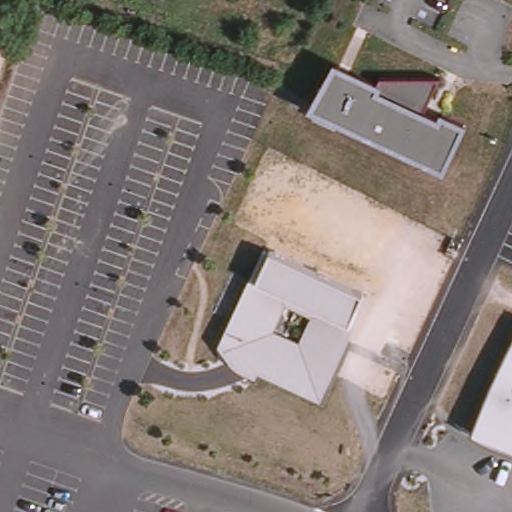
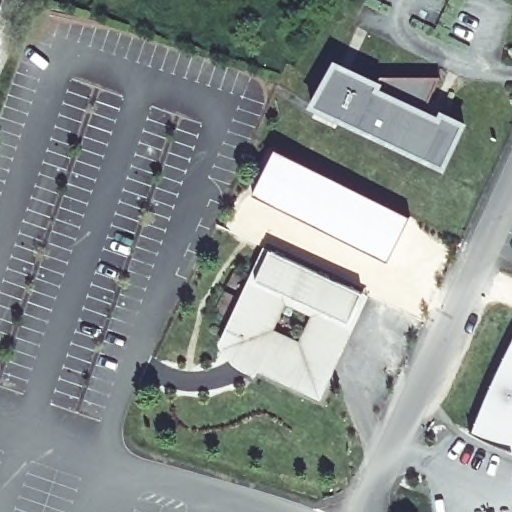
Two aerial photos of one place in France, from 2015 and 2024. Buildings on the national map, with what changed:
unchanged [(381,80),(382,77),(439,77),(428,111),(439,116),(443,110),(469,124),(447,170),(310,108),(335,60),(381,80)]
new [(274,148),(410,216),(387,262),(251,193),(274,148)]
unchanged [(366,294),(353,322),(322,397),(261,372),(258,377),(231,363),(219,344),(250,275),(257,279),(270,249),(366,294)]
unchanged [(472,432),(494,378),(512,344),(512,448),(472,432)]

